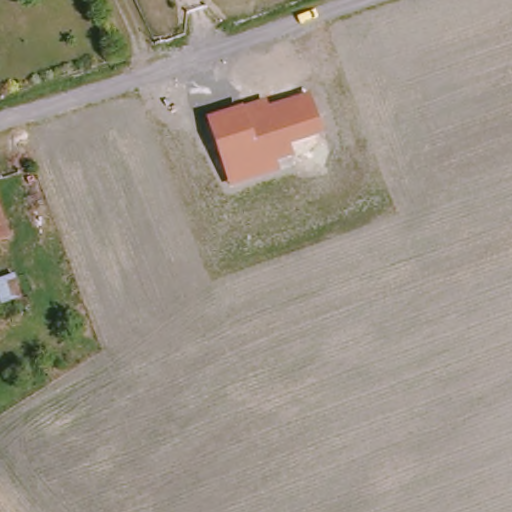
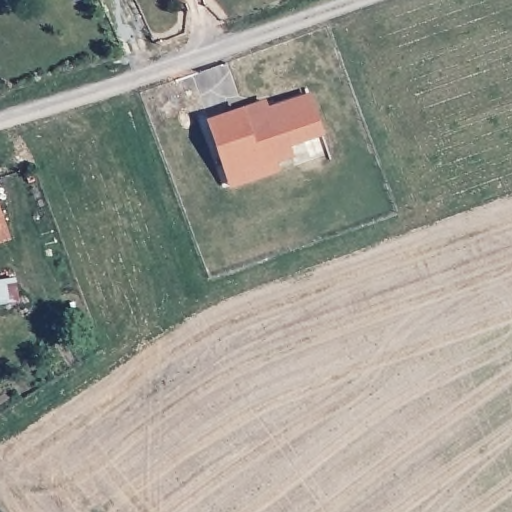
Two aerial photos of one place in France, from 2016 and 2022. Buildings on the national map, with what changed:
unchanged [(328,139),(294,152),(297,161),(281,166),(284,175),(229,193),(208,122),(269,102),(271,109),(313,96),(328,139)]
unchanged [(0,246),(0,204),(13,241),(0,246)]

